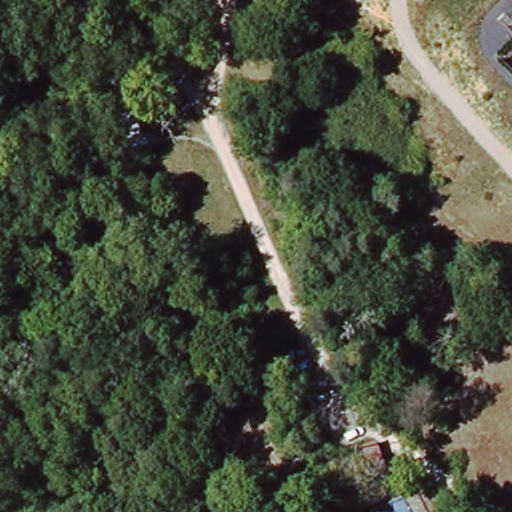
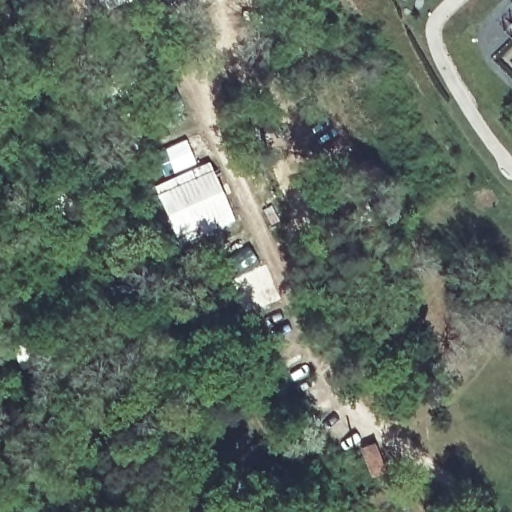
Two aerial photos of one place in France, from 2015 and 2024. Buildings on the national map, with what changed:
new [(173,174),(162,149),(186,138),(198,164),(210,160),(237,221),(179,245),(152,185),(167,177),(173,174)]
unchanged [(392,339),(409,331),(416,344),(422,341),(437,383),(430,386),(428,381),(411,389),(392,339)]
unchanged [(368,445),(380,440),(387,460),(375,466),(368,445)]

